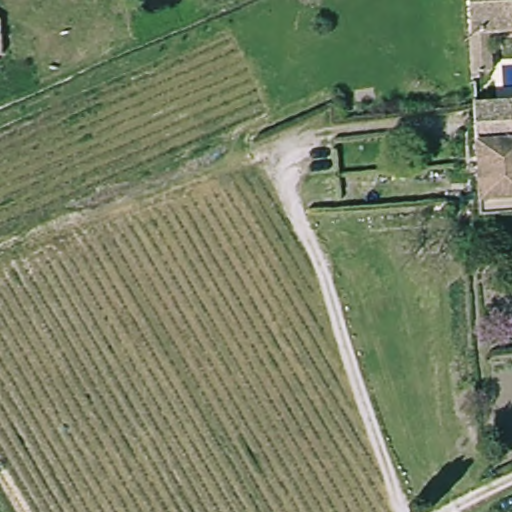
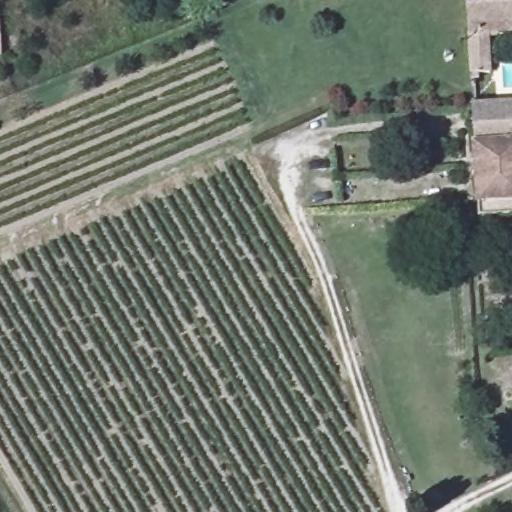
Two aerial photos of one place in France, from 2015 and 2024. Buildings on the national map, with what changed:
unchanged [(495,70),(475,71),(470,0),(512,0),(512,34),(509,34),(494,34),(495,70)]
unchanged [(474,104),(474,99),(512,99),(512,208),(479,208),(474,104)]

